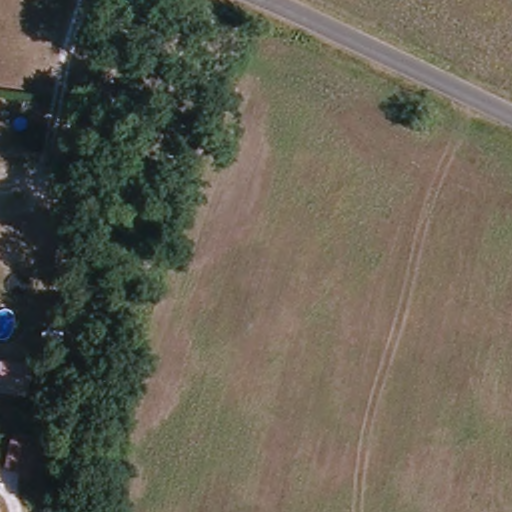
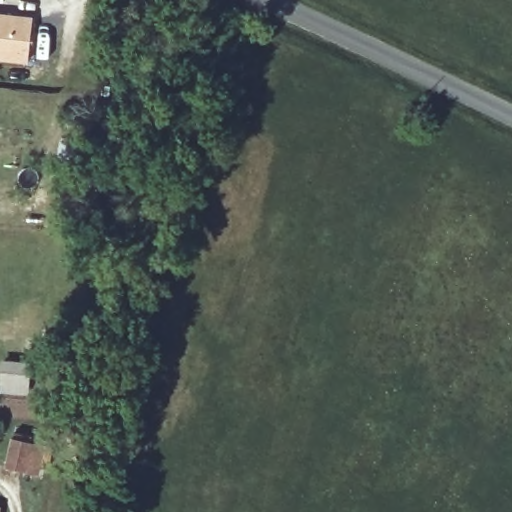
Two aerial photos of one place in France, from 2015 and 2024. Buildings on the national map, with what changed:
new [(32,17),(28,61),(0,59),(0,14),(32,17)]

